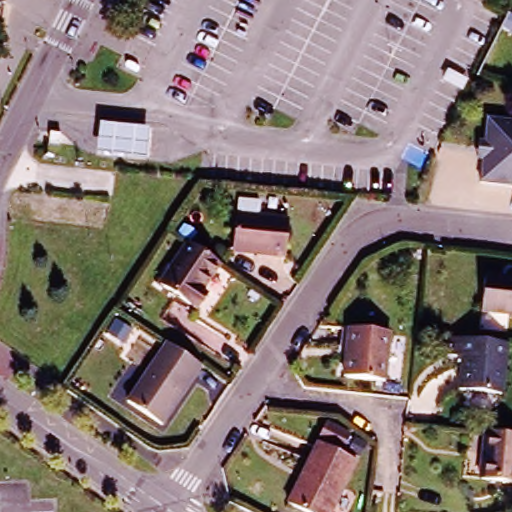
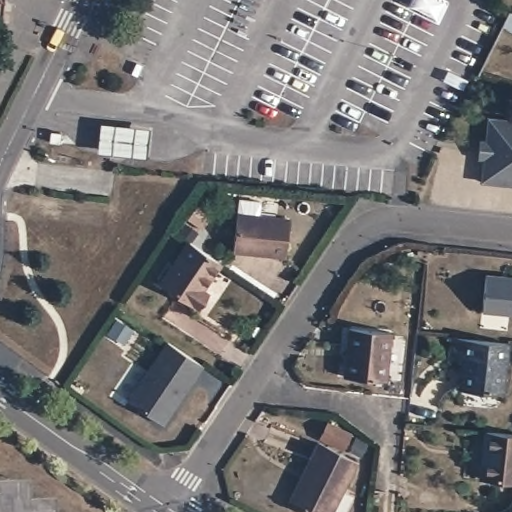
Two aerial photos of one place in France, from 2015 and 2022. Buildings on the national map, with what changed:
unchanged [(484,114),(512,117),(512,180),(477,176),(484,114)]
unchanged [(148,127),(146,158),(96,152),(98,122),(148,127)]
unchanged [(60,135),(60,141),(51,141),(52,134),(60,135)]
unchanged [(285,256),(233,251),(237,215),(288,220),(285,256)]
unchanged [(208,293),(198,308),(161,284),(189,242),(222,264),(203,290),(208,293)]
unchanged [(486,271),(512,274),(512,308),(482,305),(486,271)]
unchanged [(385,333),(380,381),(340,377),(345,329),(385,333)]
unchanged [(465,388),(468,357),(452,356),(455,338),(511,343),(505,393),(465,388)]
unchanged [(138,426),(147,414),(128,401),(168,342),(202,365),(162,424),(153,437),(138,426)]
unchanged [(328,425),(351,436),(345,449),(322,438),(328,425)]
unchanged [(480,478),(485,432),(512,435),(512,482),(480,478)]
unchanged [(306,512),(290,504),(319,444),(355,462),(331,512),(306,512)]

